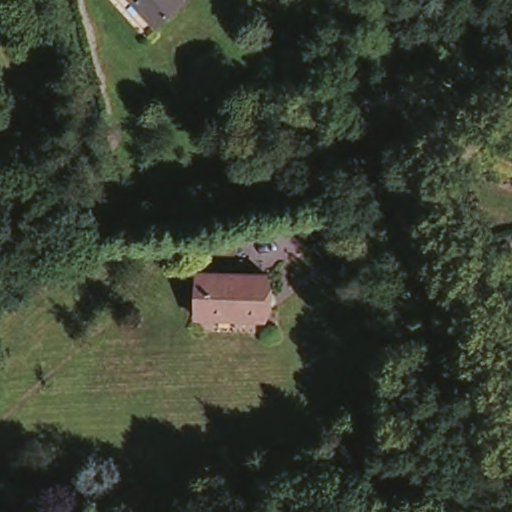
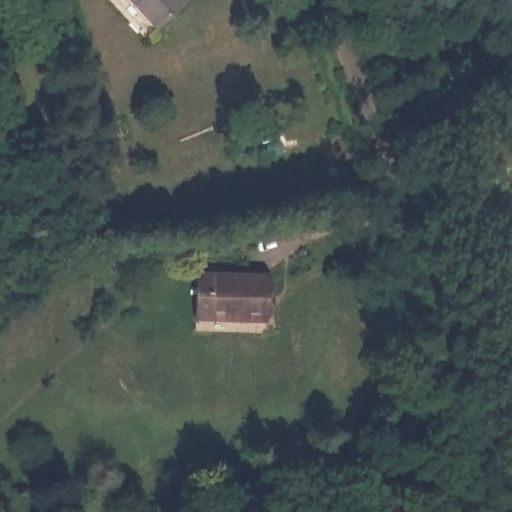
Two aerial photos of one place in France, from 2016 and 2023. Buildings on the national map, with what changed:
unchanged [(156,23),(135,0),(181,0),(156,23)]
unchanged [(197,270),(267,272),(265,316),(195,314),(197,270)]

